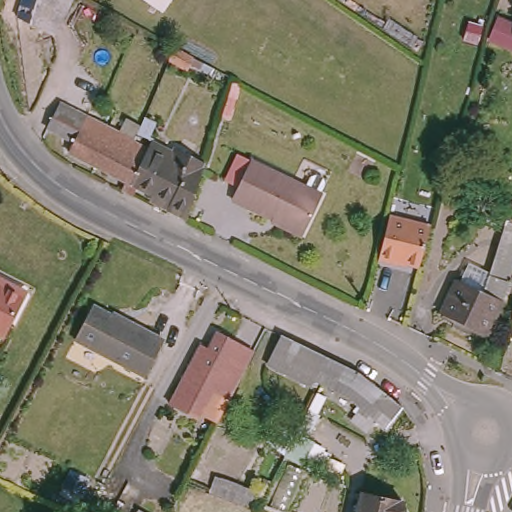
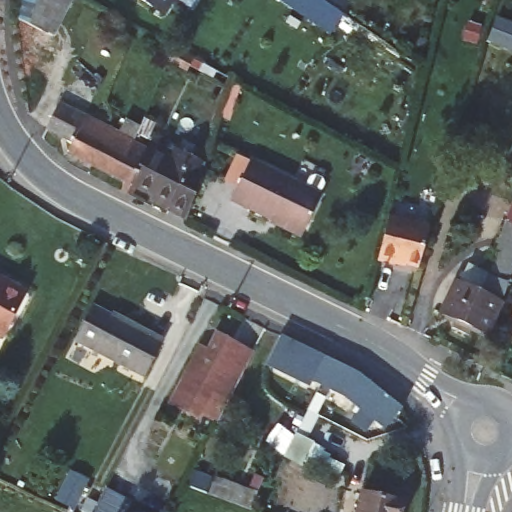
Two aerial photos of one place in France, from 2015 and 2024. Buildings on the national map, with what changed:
unchanged [(73,0),(57,30),(33,19),(30,22),(2,14),(6,0),(73,0)]
unchanged [(144,0),(173,0),(163,14),(144,0)]
new [(278,0),(317,0),(342,17),(330,35),(278,0)]
new [(342,17),(317,0),(346,0),(351,4),(342,17)]
unchanged [(497,19),(512,25),(512,46),(489,37),(497,19)]
unchanged [(174,48),(191,58),(186,70),(168,61),(174,48)]
unchanged [(96,164),(72,151),(77,143),(51,130),(64,101),(123,132),(129,118),(146,126),(149,119),(160,124),(155,140),(147,136),(143,134),(139,141),(152,148),(146,160),(142,168),(131,192),(130,193),(125,190),(130,181),(96,164)]
unchanged [(142,168),(146,160),(152,148),(154,143),(177,154),(180,149),(210,164),(205,179),(192,218),(172,208),(174,203),(141,187),(138,194),(131,192),(142,168)]
unchanged [(320,198),(302,237),(230,203),(249,164),(320,198)]
unchanged [(395,262),(394,265),(378,262),(388,217),(430,229),(419,268),(395,262)]
unchanged [(477,332),(463,325),(466,318),(452,310),(467,279),(493,292),(512,228),(512,292),(510,300),(496,334),(480,325),(477,332)]
unchanged [(24,299),(3,338),(0,337),(0,280),(10,285),(22,292),(24,299)]
unchanged [(77,341),(95,308),(129,327),(130,325),(165,344),(146,379),(77,341)]
unchanged [(204,338),(215,344),(223,328),(258,347),(233,394),(221,417),(204,408),(202,414),(173,397),(172,397),(187,369),(188,369),(204,338)]
unchanged [(340,363),(330,384),(321,379),(319,384),(276,363),(291,334),(343,361),(345,362),(340,363)]
unchanged [(395,429),(384,421),(374,433),(360,420),(370,409),(355,396),(343,389),(330,384),(340,363),(345,362),(368,373),(412,408),(395,429)]
unchanged [(296,433),(313,442),(302,464),(284,454),(296,433)]
unchanged [(409,505),(407,512),(360,512),(365,489),(407,498),(406,502),(409,505)]

